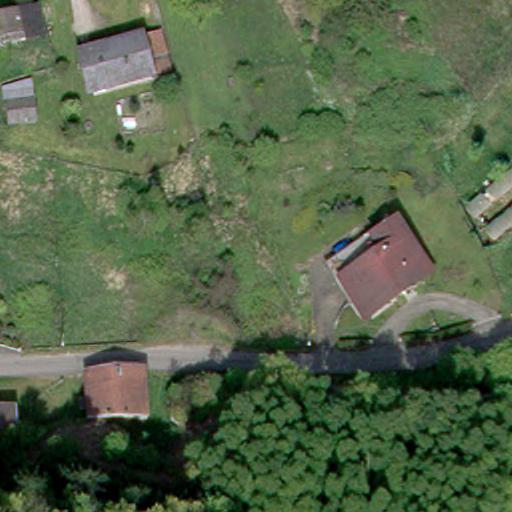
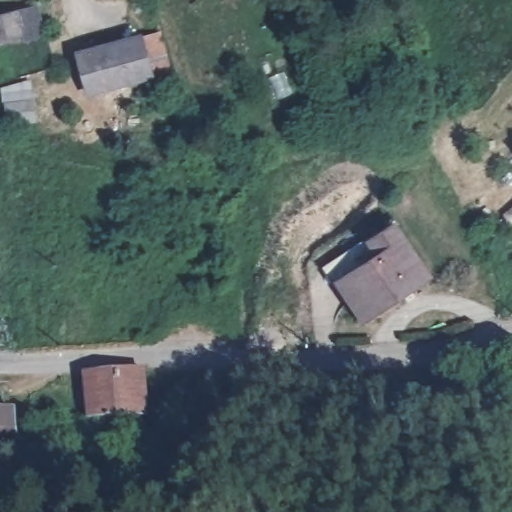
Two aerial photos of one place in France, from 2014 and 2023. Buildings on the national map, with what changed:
unchanged [(0,41),(0,15),(40,6),(47,31),(0,41)]
unchanged [(125,40),(145,34),(146,40),(155,72),(136,78),(74,96),(65,64),(63,57),(125,40)]
unchanged [(379,249),(370,235),(392,221),(424,270),(362,312),(337,276),(379,249)]
unchanged [(70,390),(77,390),(77,368),(82,368),(111,366),(136,363),(136,367),(157,366),(160,406),(79,411),(78,398),(71,398),(70,390)]
unchanged [(11,425),(0,425),(0,397),(12,398),(11,425)]

